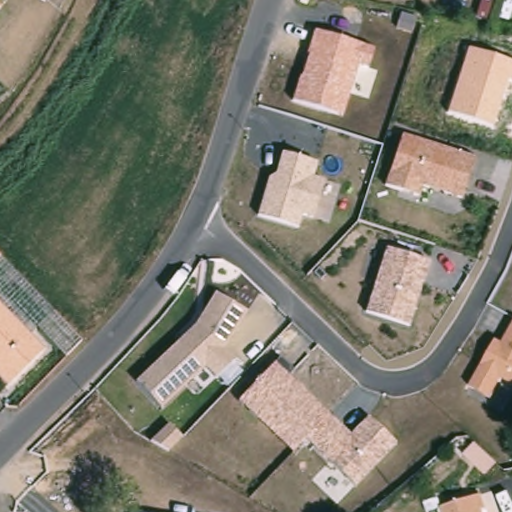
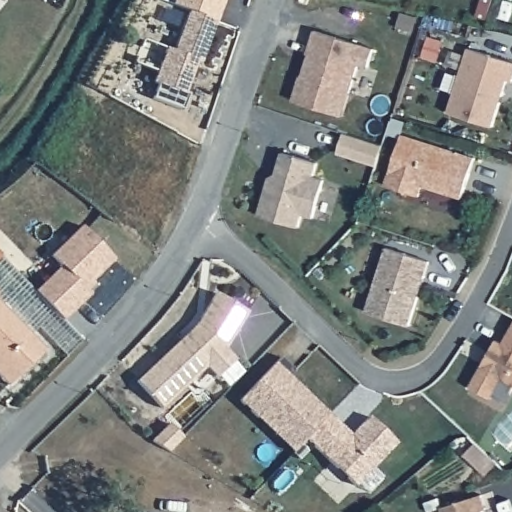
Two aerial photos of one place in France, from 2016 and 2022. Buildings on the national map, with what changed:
new [(224,0),(216,21),(189,11),(172,5),(174,0),(224,0)]
new [(158,84),(153,82),(166,49),(174,51),(189,11),(216,21),(200,63),(196,61),(185,93),(188,95),(182,111),(152,99),(158,84)]
unchanged [(292,98),(312,30),(372,48),(365,68),(357,64),(341,114),(292,98)]
unchanged [(467,51),(512,63),(512,79),(511,81),(507,80),(492,126),(447,112),(467,51)]
new [(342,134),(381,146),(375,166),(336,154),(342,134)]
unchanged [(462,199),(421,186),(419,196),(385,186),(401,134),(475,156),(462,199)]
unchanged [(268,178),(275,174),(281,153),(315,164),(312,176),(324,179),(312,218),(302,214),(298,229),(257,217),(268,178)]
new [(64,320),(34,290),(60,266),(50,255),(80,226),(114,258),(91,281),(94,284),(87,291),(90,294),(64,320)]
unchanged [(411,327),(365,312),(386,247),(432,261),(411,327)]
unchanged [(26,340),(40,354),(2,391),(0,388),(0,265),(14,279),(79,345),(63,361),(35,333),(26,340)]
unchanged [(224,348),(235,361),(215,379),(205,368),(160,409),(134,381),(195,324),(214,292),(247,310),(224,348)]
unchanged [(503,381),(491,400),(469,387),(496,338),(502,342),(512,323),(512,386),(503,381)]
unchanged [(355,487),(305,438),(290,453),(237,400),(276,362),(350,434),(368,415),(397,442),(355,487)]
unchanged [(482,500),(486,512),(445,512),(445,511),(482,500)]

